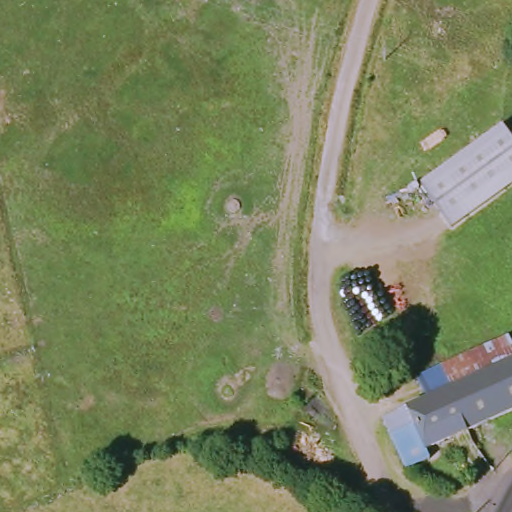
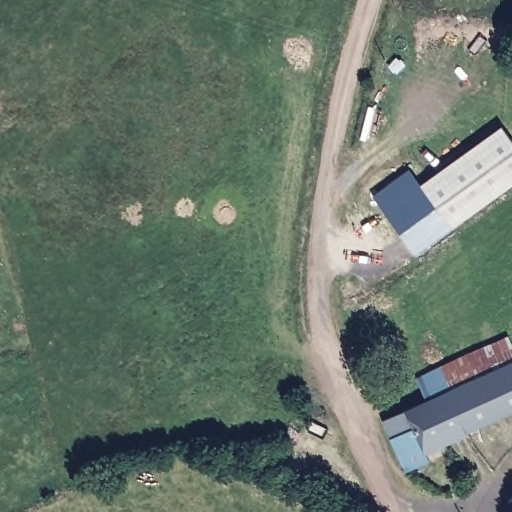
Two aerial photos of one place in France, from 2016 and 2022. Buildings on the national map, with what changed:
unchanged [(512,131),(512,184),(456,225),(426,182),(507,124),(512,131)]
new [(415,254),(374,196),(410,170),(420,186),(426,182),(456,225),(415,254)]
unchanged [(512,337),(512,338),(512,364),(428,399),(418,379),(512,337)]
unchanged [(428,399),(512,364),(512,412),(423,451),(427,459),(404,469),(391,436),(386,418),(428,399)]

